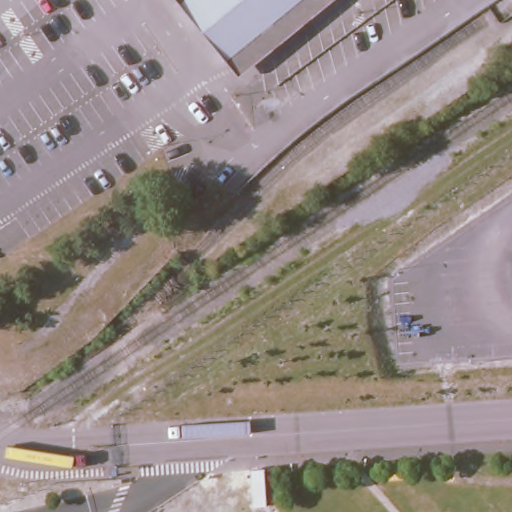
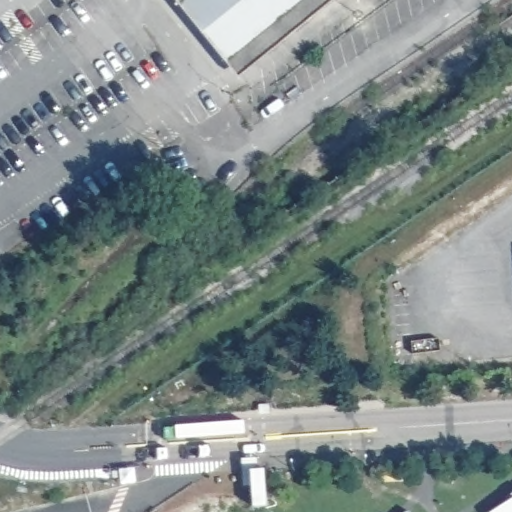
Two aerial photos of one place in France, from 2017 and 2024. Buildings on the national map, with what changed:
unchanged [(303,0),(229,60),(180,0),(303,0)]
unchanged [(303,0),(333,0),(240,74),(229,60),(303,0)]
new [(512,499),(512,512),(491,512),(512,499)]
new [(409,512),(407,512),(408,511),(409,512)]

